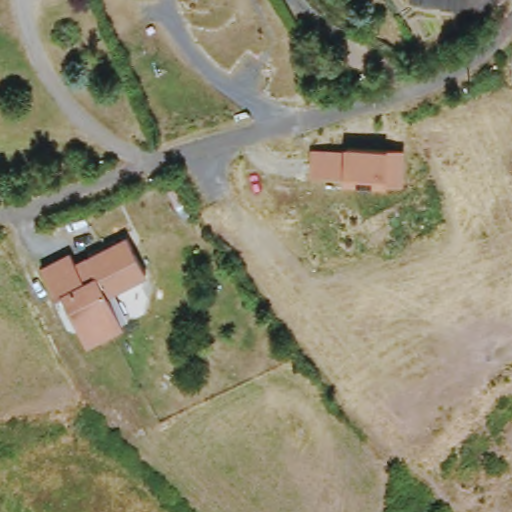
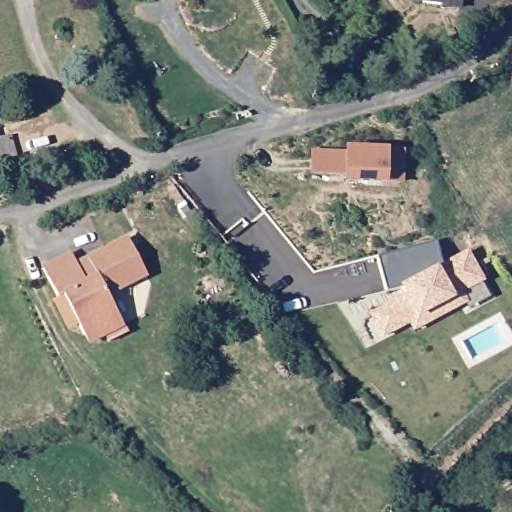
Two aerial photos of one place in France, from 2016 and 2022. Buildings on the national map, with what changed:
unchanged [(442,8),(421,5),(422,0),(461,0),(460,14),(444,13),(442,8)]
unchanged [(345,149),(344,144),(404,147),(402,182),(384,183),(343,182),(343,176),(309,175),(310,147),(345,149)]
new [(485,280),(463,292),(468,302),(413,332),(409,325),(383,337),(369,311),(404,294),(401,288),(387,294),(379,257),(437,243),(442,263),(469,250),(485,280)]
unchanged [(149,282),(109,299),(122,331),(94,342),(81,337),(65,296),(59,298),(47,268),(76,257),(81,267),(93,262),(134,245),(149,282)]

